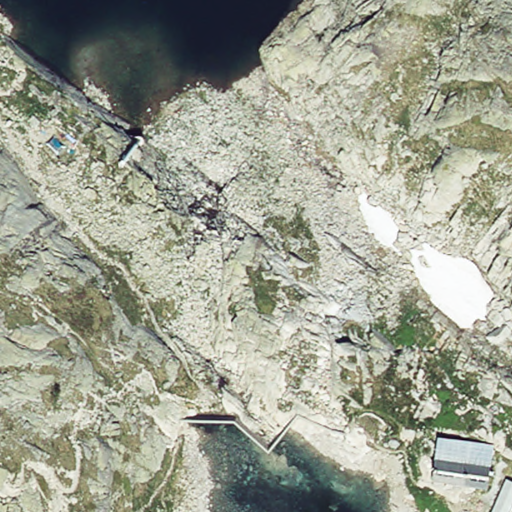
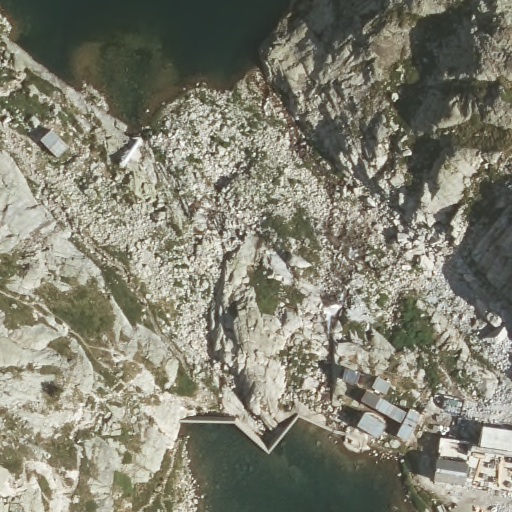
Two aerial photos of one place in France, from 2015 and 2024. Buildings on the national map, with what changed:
unchanged [(490,491),(435,483),(441,437),(497,445),(490,491)]
unchanged [(512,512),(494,512),(507,476),(512,478),(512,512)]

